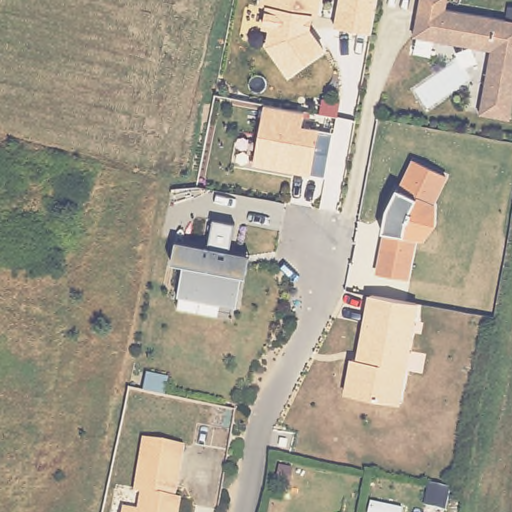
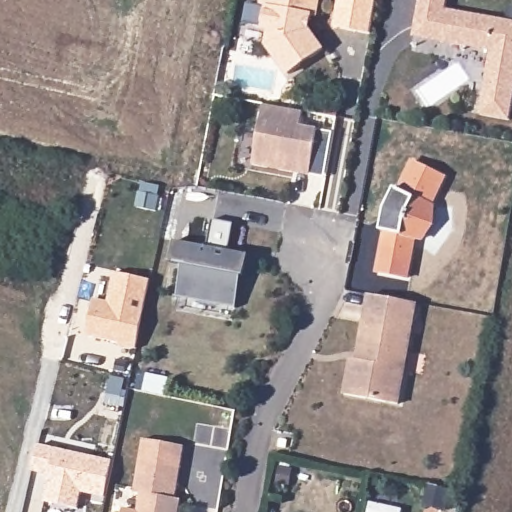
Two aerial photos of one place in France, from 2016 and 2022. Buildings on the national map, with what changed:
unchanged [(267,46),(268,31),(261,29),(266,8),(260,7),(260,0),(316,0),(311,30),(322,48),(290,74),(267,46)]
unchanged [(374,35),(334,29),(339,0),(379,0),(374,35)]
unchanged [(479,117),(491,54),(439,44),(413,39),(415,30),(421,0),(448,0),(448,2),(512,14),(512,106),(509,122),(479,117)]
unchanged [(305,116),(304,127),(319,129),(312,174),(251,167),(263,104),(305,116)]
unchanged [(385,207),(412,160),(448,178),(435,203),(436,228),(426,245),(417,243),(410,281),(374,273),(385,207)]
unchanged [(179,298),(186,266),(174,264),(178,242),(211,248),(216,221),(238,225),(233,252),(253,257),(251,266),(248,265),(239,309),(179,298)]
new [(97,297),(112,301),(119,271),(155,278),(140,347),(122,343),(123,341),(89,333),(97,297)]
unchanged [(369,296),(421,305),(401,405),(345,394),(351,359),(357,359),(369,296)]
unchanged [(174,498),(180,499),(177,512),(120,512),(121,507),(136,510),(141,492),(133,491),(145,437),(185,446),(174,498)]
new [(39,445),(114,461),(106,497),(81,492),(78,508),(45,501),(51,475),(32,471),(39,445)]

